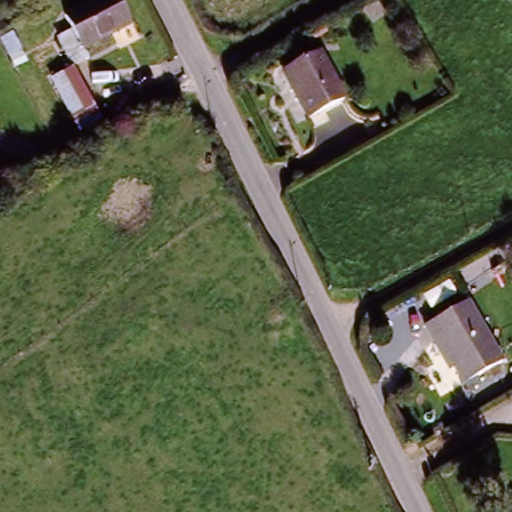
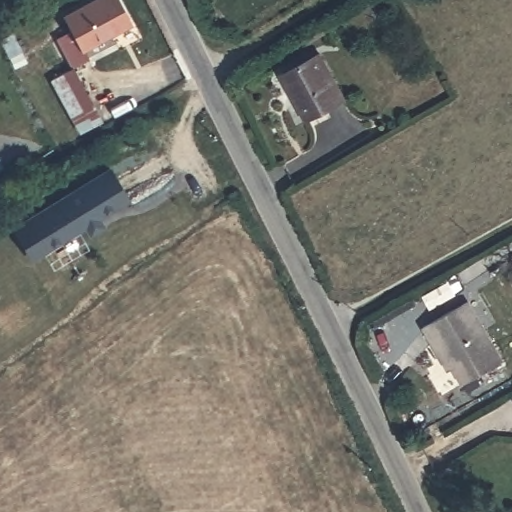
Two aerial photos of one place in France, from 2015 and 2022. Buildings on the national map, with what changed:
unchanged [(62,47),(75,41),(67,25),(114,0),(117,0),(132,31),(87,55),(91,65),(75,74),(62,47)]
unchanged [(312,126),(287,82),(327,60),(352,103),(312,126)]
unchanged [(55,86),(75,74),(86,96),(97,116),(75,127),(65,104),(55,86)]
new [(110,166),(132,199),(101,218),(107,227),(90,237),(86,227),(33,261),(12,230),(19,227),(16,223),(110,166)]
unchanged [(467,381),(441,341),(437,341),(430,326),(472,302),(505,362),(467,381)]

